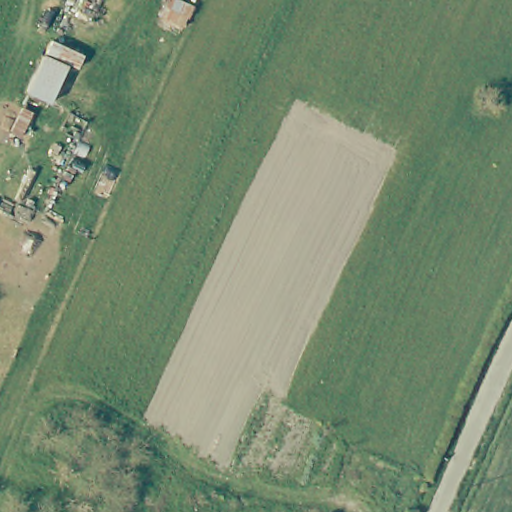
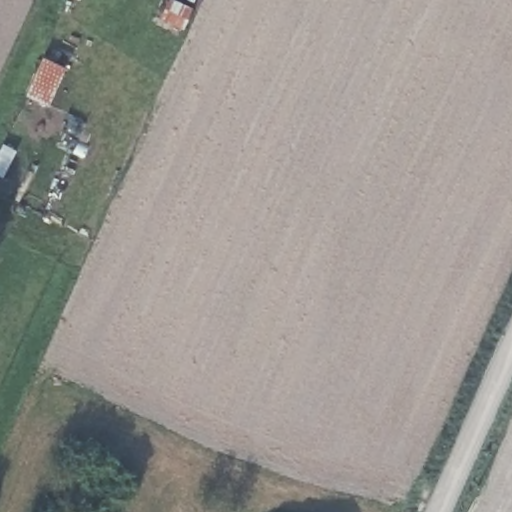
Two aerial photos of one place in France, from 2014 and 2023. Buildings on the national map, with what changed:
unchanged [(80,71),(70,68),(50,106),(29,97),(50,41),(85,58),(80,71)]

